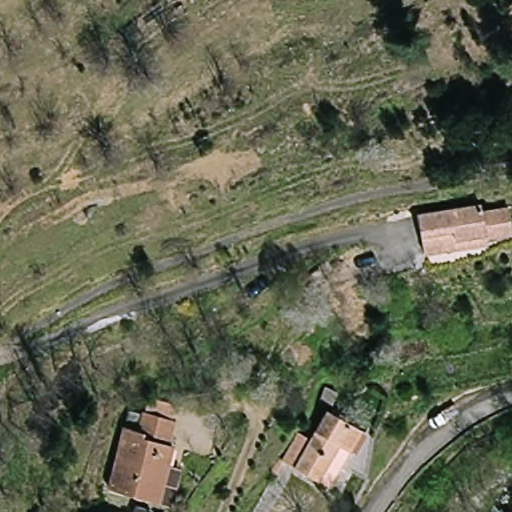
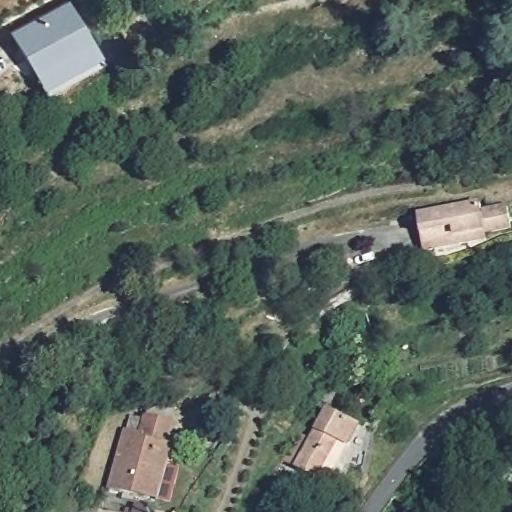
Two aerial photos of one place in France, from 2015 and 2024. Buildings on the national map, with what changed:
new [(8,32),(65,0),(66,0),(95,52),(38,85),(8,32)]
unchanged [(429,259),(419,222),(481,205),(483,213),(508,207),(512,220),(512,230),(489,235),(490,243),(461,250),(429,259)]
unchanged [(326,474),(302,461),(332,402),(365,420),(355,440),(346,436),(326,474)]
unchanged [(157,495),(114,482),(131,422),(143,425),(148,407),(179,415),(172,440),(179,443),(172,462),(184,465),(190,467),(180,501),(167,497),(157,495)]

